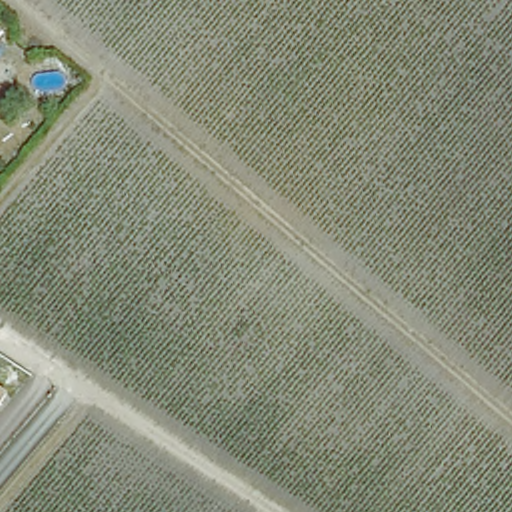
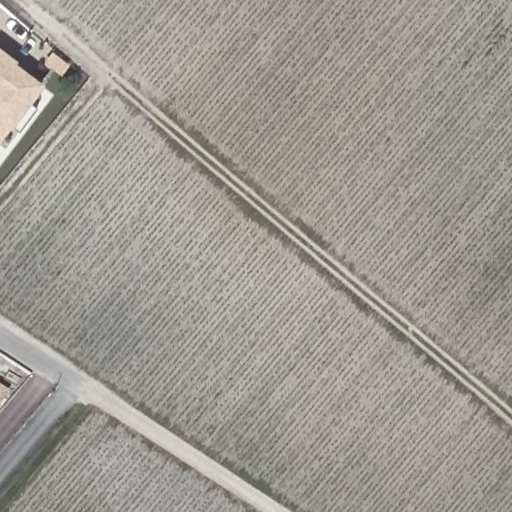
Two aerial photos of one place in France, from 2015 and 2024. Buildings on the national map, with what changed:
new [(0,141),(0,48),(46,83),(0,141)]
unchanged [(0,405),(0,385),(10,391),(0,405)]

